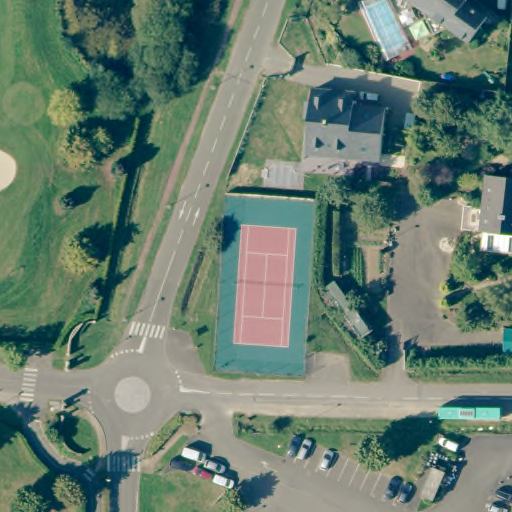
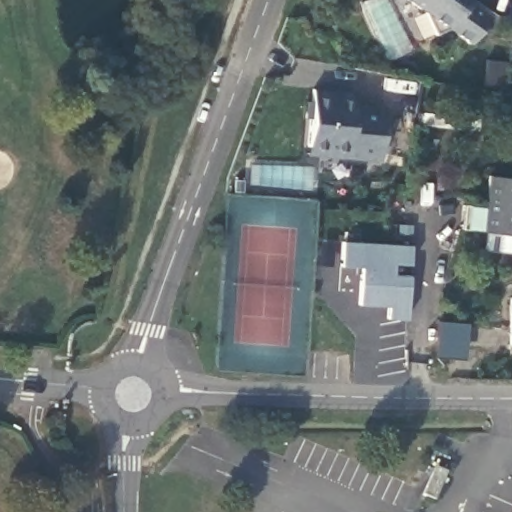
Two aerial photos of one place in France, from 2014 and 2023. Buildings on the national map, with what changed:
unchanged [(448,30),(435,36),(424,13),(405,0),(469,0),(467,4),(488,19),(469,45),(448,30)]
unchanged [(357,93),(355,105),(385,108),(381,161),(307,155),(313,89),(357,93)]
unchanged [(484,177),(512,179),(512,238),(479,235),(481,212),(484,177)]
new [(388,305),(358,304),(362,268),(340,267),(341,240),(412,244),(412,264),(391,263),(391,274),(412,275),(409,319),(384,318),(388,305)]
new [(512,298),(512,335),(511,334),(510,298),(512,298)]
unchanged [(430,492),(420,488),(430,462),(441,466),(430,492)]

